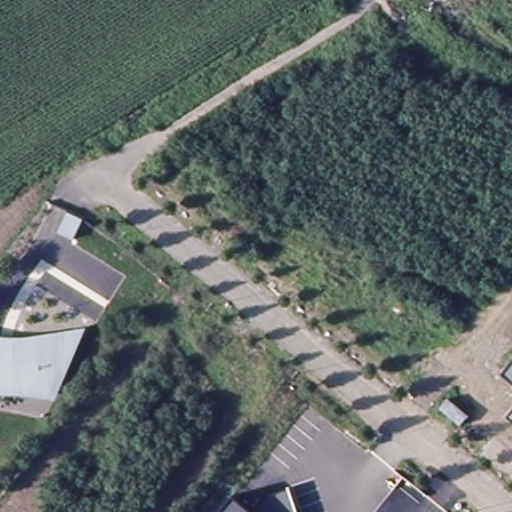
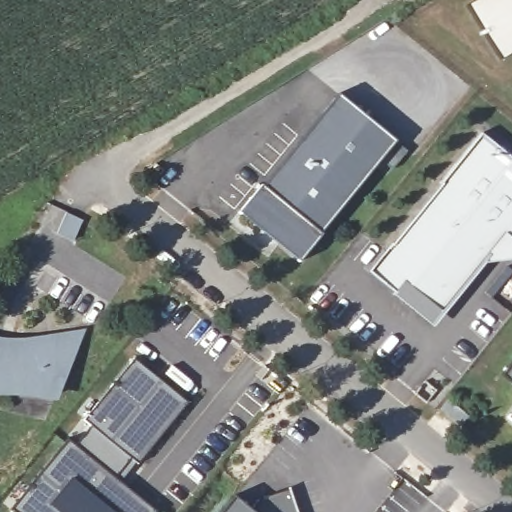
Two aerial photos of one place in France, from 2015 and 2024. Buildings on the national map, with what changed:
new [(512,53),(503,59),(469,4),(475,0),(512,0),(512,53)]
new [(265,189),(266,190),(341,97),(400,144),(325,237),(326,238),(303,266),(301,269),(240,220),(242,216),(265,189)]
new [(370,277),(392,249),(394,250),(443,189),(441,188),(481,138),(512,162),(512,256),(486,265),(443,319),(435,330),(416,315),(370,277)]
unchanged [(11,338),(21,338),(85,328),(56,400),(26,395),(8,394),(0,394),(0,336),(11,338)]
new [(92,427),(85,421),(135,359),(190,404),(140,465),(137,464),(122,482),(160,512),(13,512),(11,511),(69,440),(77,446),(92,427)]
unchanged [(512,382),(502,374),(512,362),(512,382)]
unchanged [(470,425),(462,435),(442,418),(450,408),(470,425)]
unchanged [(512,411),(512,420),(507,416),(512,411)]
unchanged [(255,510),(267,495),(291,487),(300,512),(221,512),(235,494),(255,510)]

